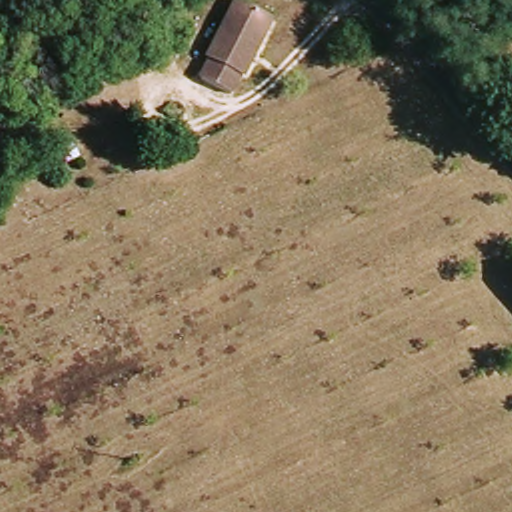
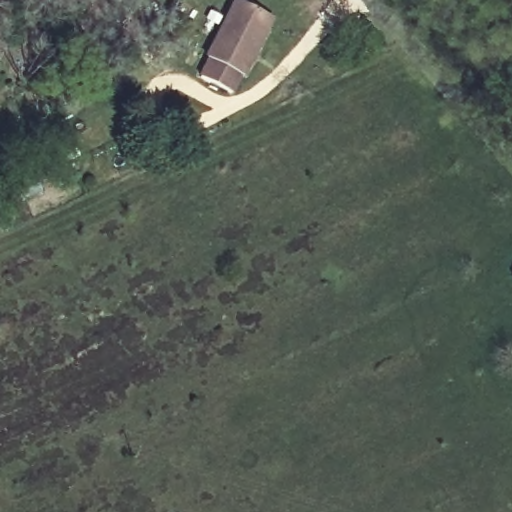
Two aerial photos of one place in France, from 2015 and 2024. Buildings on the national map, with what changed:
unchanged [(278,21),(237,96),(198,74),(220,35),(238,0),(241,0),(263,13),(278,21)]

